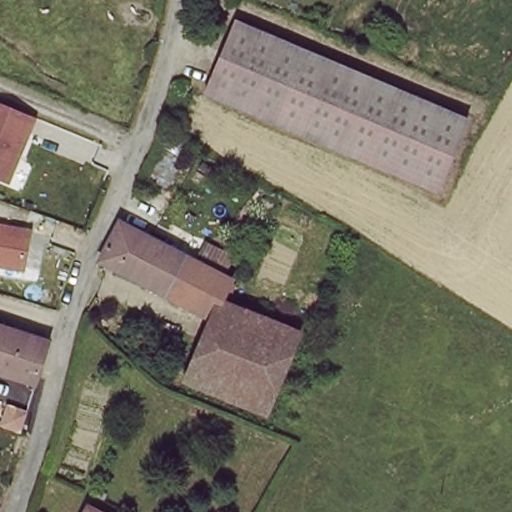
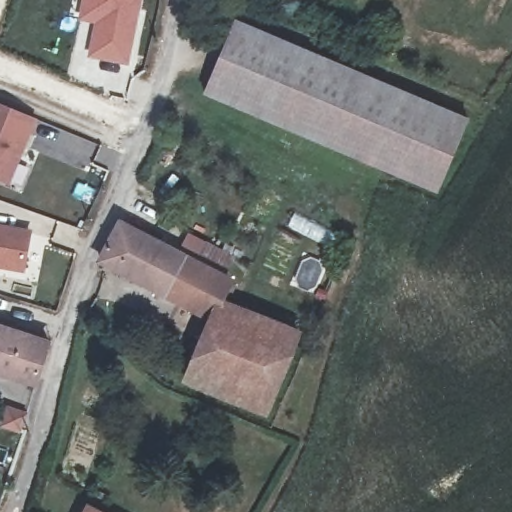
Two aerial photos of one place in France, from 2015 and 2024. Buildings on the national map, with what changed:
new [(86,57),(94,24),(77,20),(81,0),(141,0),(127,65),(86,57)]
unchanged [(462,121),(428,193),(210,96),(240,20),(462,121)]
unchanged [(11,186),(0,182),(0,104),(38,119),(11,186)]
unchanged [(27,273),(0,269),(0,223),(34,229),(27,273)]
unchanged [(234,283),(230,297),(219,322),(109,280),(122,247),(234,283)]
unchanged [(230,297),(302,331),(271,407),(198,375),(219,322),(230,297)]
unchanged [(49,345),(37,380),(0,367),(0,328),(49,345)]
unchanged [(101,512),(85,512),(88,506),(101,512)]

